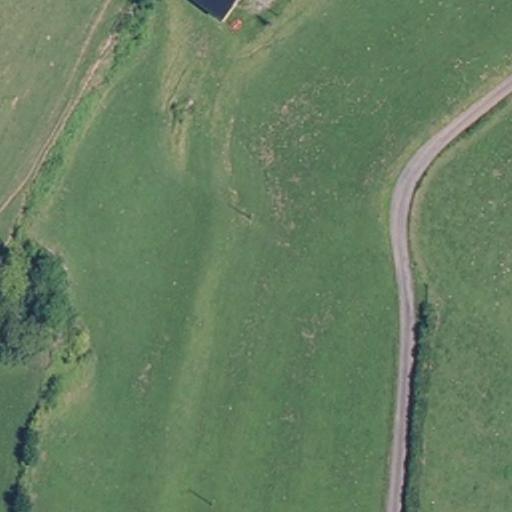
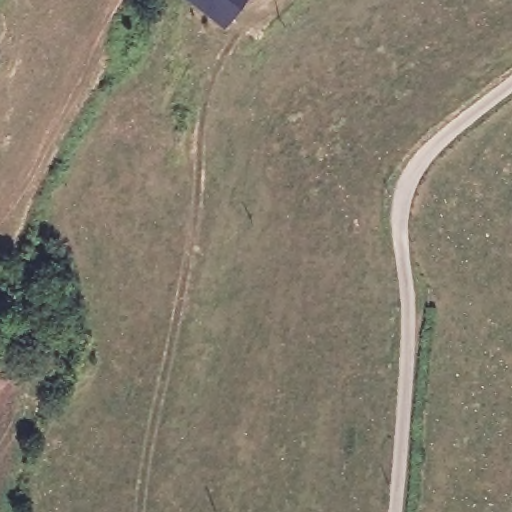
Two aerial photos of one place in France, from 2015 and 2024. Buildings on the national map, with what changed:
unchanged [(224,27),(183,0),(244,0),(224,27)]

